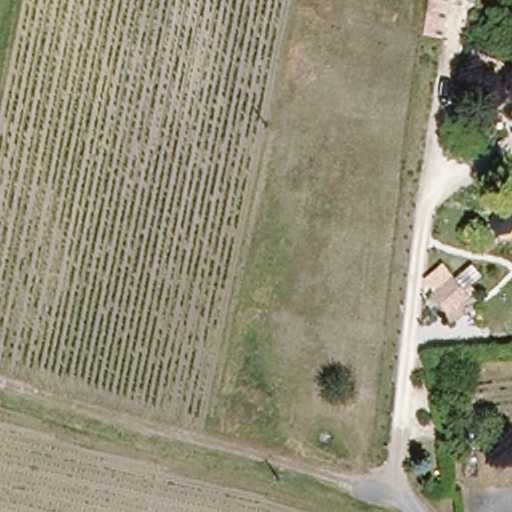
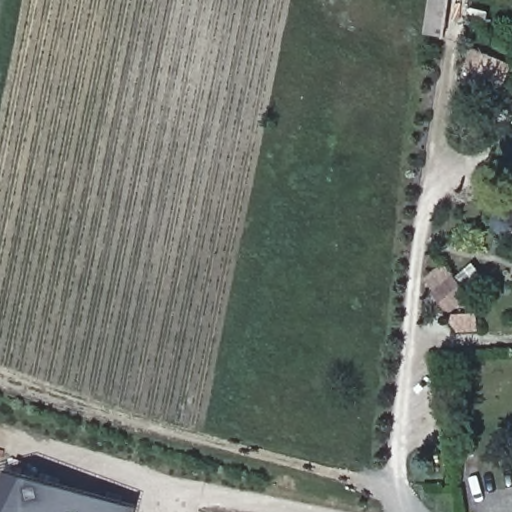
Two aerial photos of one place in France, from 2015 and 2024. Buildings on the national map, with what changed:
new [(445,38),(423,35),(430,0),(450,0),(445,38)]
unchanged [(448,284),(466,301),(448,318),(430,300),(448,284)]
new [(0,512),(0,498),(7,472),(134,510),(134,512),(0,512)]

